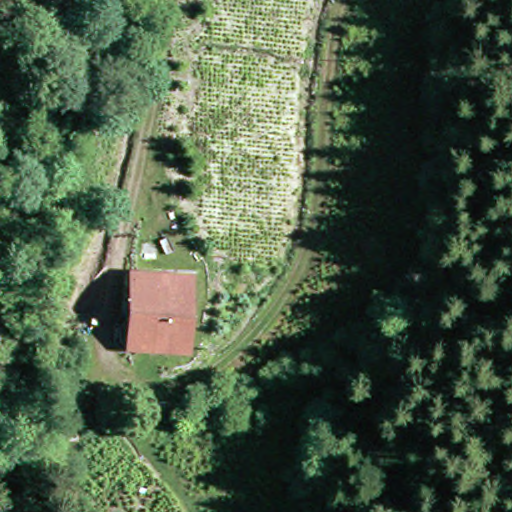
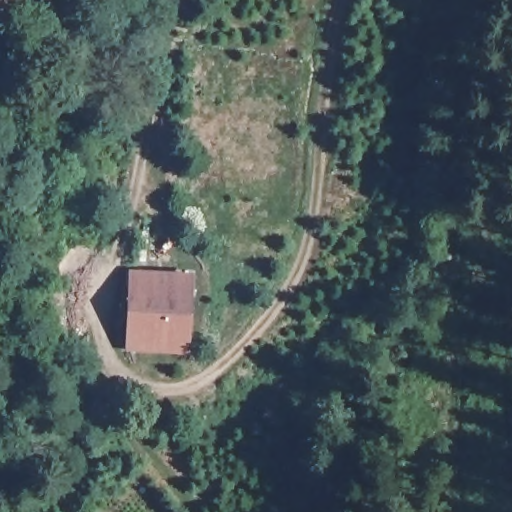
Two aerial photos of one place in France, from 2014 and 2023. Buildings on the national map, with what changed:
unchanged [(157,350),(130,347),(146,266),(197,273),(185,353),(157,350)]

